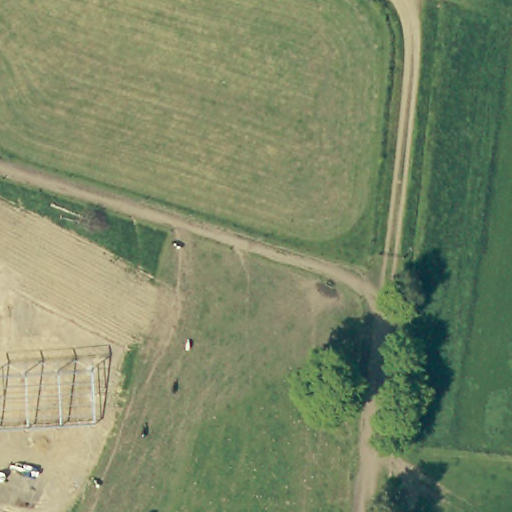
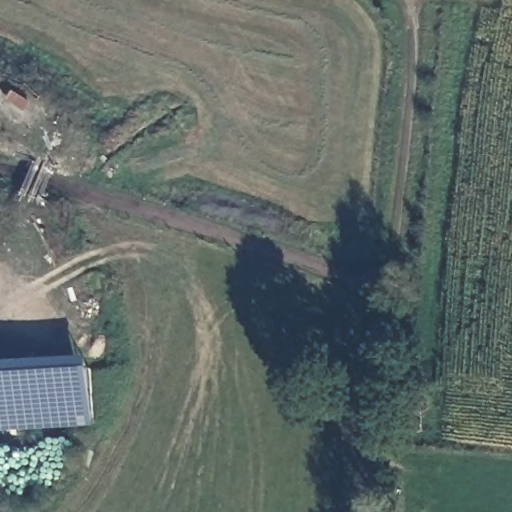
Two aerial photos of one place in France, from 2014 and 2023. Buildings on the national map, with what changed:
new [(89,356),(93,425),(0,430),(0,361),(89,356)]

